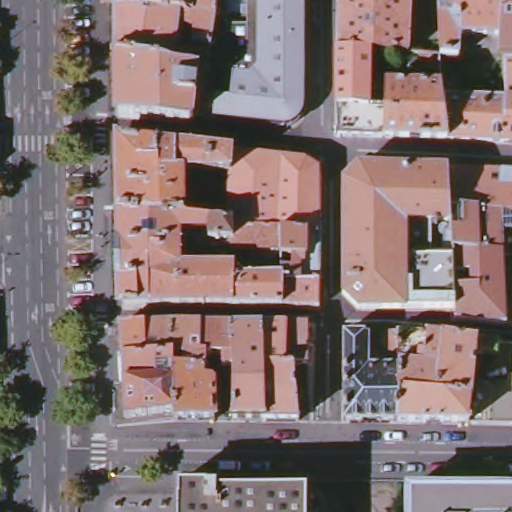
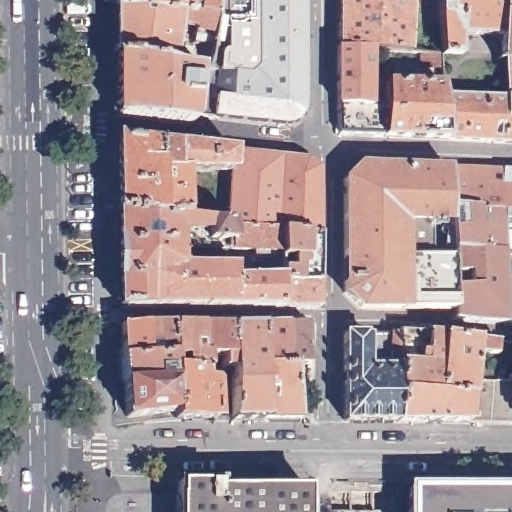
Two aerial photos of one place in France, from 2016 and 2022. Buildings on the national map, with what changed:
unchanged [(117,0),(121,0),(216,13),(211,41),(196,40),(196,25),(181,18),(179,60),(117,51),(117,0)]
unchanged [(216,13),(121,0),(218,0),(216,13)]
unchanged [(201,62),(208,63),(211,41),(216,13),(218,0),(308,0),(308,100),(308,102),(308,104),(308,106),(306,107),(306,110),(304,112),(303,113),(300,116),(299,117),(298,118),(296,119),(295,120),(292,120),(291,121),(289,121),(288,121),(285,121),(279,120),(198,110),(201,62)]
unchanged [(340,0),(411,0),(411,46),(390,45),(374,44),(339,41),(340,0)]
unchanged [(505,92),(506,52),(500,52),(502,25),(461,21),(459,50),(444,49),(440,0),(503,0),(512,0),(512,138),(451,134),(447,87),(505,92)]
unchanged [(341,129),(339,41),(374,44),(371,101),(387,103),(386,131),(341,129)]
unchanged [(444,49),(446,62),(424,61),(424,47),(444,49)]
unchanged [(197,115),(191,119),(118,110),(117,51),(179,60),(201,62),(198,110),(197,115)]
unchanged [(387,103),(389,78),(447,80),(447,87),(451,134),(386,131),(387,103)]
unchanged [(116,136),(224,149),(224,172),(180,172),(180,216),(117,212),(116,136)]
unchanged [(224,172),(224,149),(304,159),(319,169),(319,233),(283,230),(229,226),(230,220),(225,220),(224,172)]
unchanged [(357,305),(342,289),(343,175),(358,160),(448,165),(449,202),(449,218),(405,215),(406,252),(451,253),(452,305),(357,305)]
unchanged [(512,168),(512,208),(449,202),(448,165),(512,168)]
unchanged [(449,202),(512,208),(512,248),(503,247),(450,242),(449,218),(449,202)]
unchanged [(316,308),(118,306),(117,212),(180,216),(225,220),(230,220),(229,226),(283,230),(281,262),(281,263),(252,263),(251,261),(251,251),(193,250),(193,245),(185,238),(180,238),(180,267),(238,267),(238,271),(242,271),(242,280),(280,280),(281,272),(294,273),(318,273),(316,308)]
unchanged [(294,262),(281,262),(283,230),(319,233),(318,273),(294,273),(294,262)]
unchanged [(452,305),(451,253),(450,242),(503,247),(504,318),(453,314),(452,305)]
unchanged [(201,355),(208,355),(208,373),(203,373),(173,375),(173,382),(122,383),(120,357),(118,326),(146,324),(173,324),(202,324),(201,355)]
unchanged [(202,324),(233,324),(232,372),(221,371),(221,355),(208,355),(201,355),(202,324)]
unchanged [(232,372),(233,324),(262,324),(263,365),(264,421),(231,421),(232,372)]
unchanged [(262,324),(288,324),(314,324),(314,328),(307,328),(309,365),(295,365),(298,420),(264,421),(263,365),(262,324)]
unchanged [(394,334),(394,331),(439,333),(498,340),(496,354),(474,353),(472,381),(468,423),(395,422),(394,334)]
unchanged [(343,421),(343,334),(394,334),(395,422),(343,421)]
unchanged [(173,415),(173,382),(173,375),(203,373),(204,380),(214,380),(214,421),(173,421),(173,415)]
unchanged [(472,381),(507,383),(507,377),(512,375),(512,424),(468,423),(472,381)]
unchanged [(124,419),(122,383),(173,382),(173,415),(124,419)]
unchanged [(215,482),(216,482),(216,488),(306,488),(306,512),(176,512),(176,481),(215,482)]
unchanged [(444,490),(512,490),(512,512),(408,512),(408,490),(444,490)]

